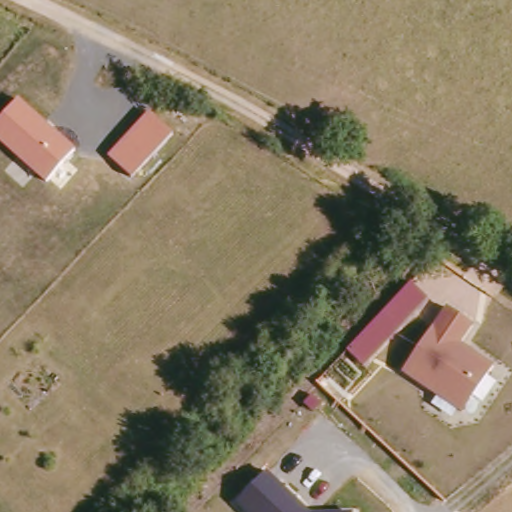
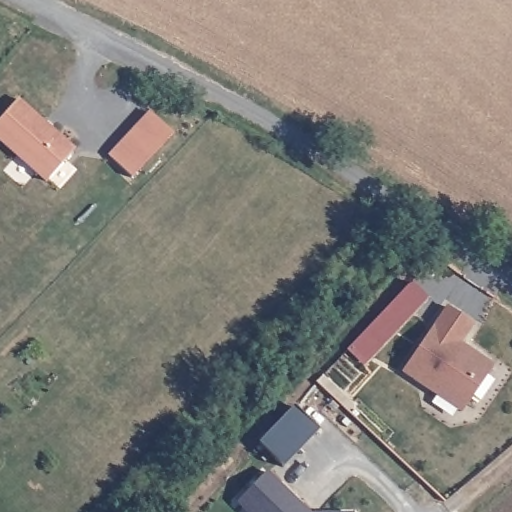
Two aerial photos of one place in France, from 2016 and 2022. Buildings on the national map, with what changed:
unchanged [(0,142),(0,123),(20,101),(76,151),(48,183),(0,142)]
unchanged [(131,177),(108,155),(148,113),(171,134),(131,177)]
unchanged [(411,284),(430,300),(363,376),(344,357),(411,284)]
unchanged [(447,308),(474,327),(462,347),(495,370),(462,416),(403,374),(447,308)]
new [(282,471),(257,447),(292,410),(317,434),(282,471)]
unchanged [(236,505),(269,474),(307,512),(244,512),(236,505)]

